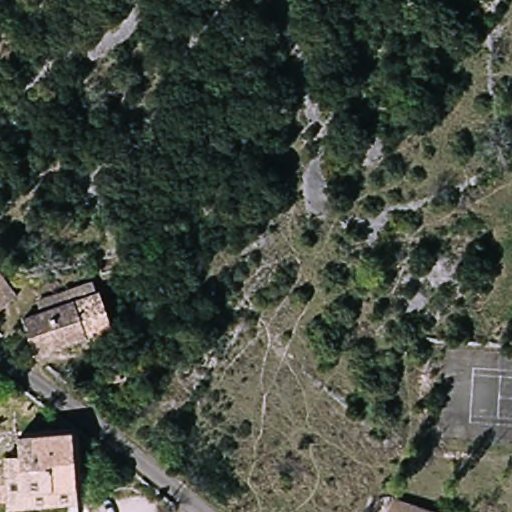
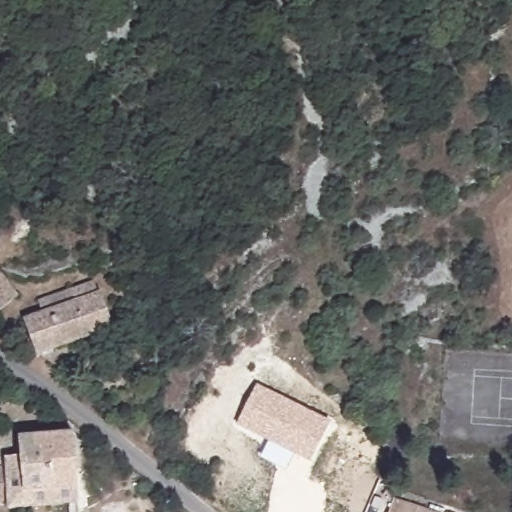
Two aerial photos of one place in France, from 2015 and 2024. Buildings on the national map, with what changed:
unchanged [(7,288),(1,294),(10,306),(2,315),(0,313),(0,280),(7,288)]
unchanged [(30,334),(49,327),(44,314),(96,296),(99,305),(110,336),(59,355),(41,361),(30,334)]
new [(310,462),(236,425),(258,383),(331,422),(310,462)]
unchanged [(83,499),(73,499),(14,504),(13,496),(0,497),(0,459),(11,458),(10,448),(28,447),(27,434),(82,430),(83,499)]
unchanged [(424,512),(388,512),(392,501),(424,512)]

